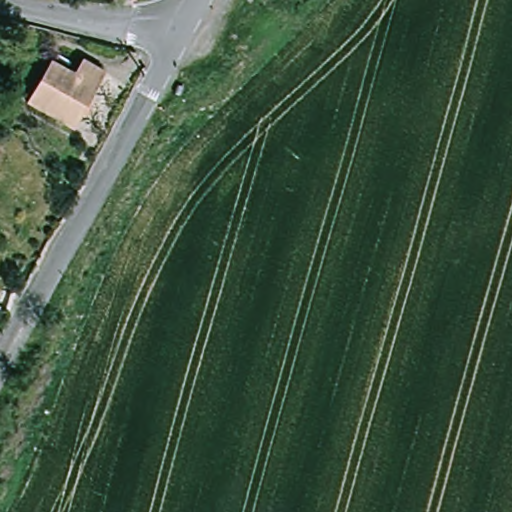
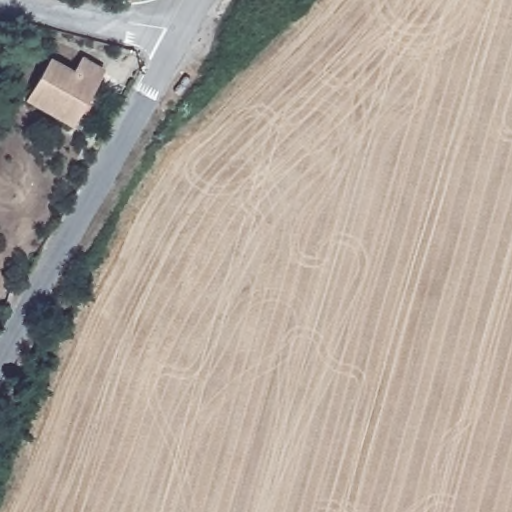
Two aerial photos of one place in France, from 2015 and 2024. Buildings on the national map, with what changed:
unchanged [(72,125),(27,100),(51,58),(74,71),(82,57),(103,69),(72,125)]

